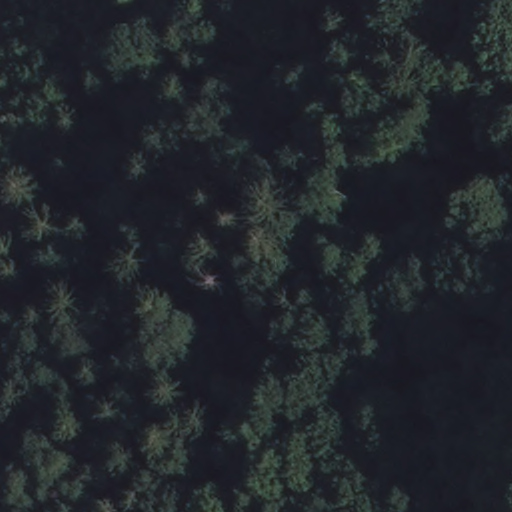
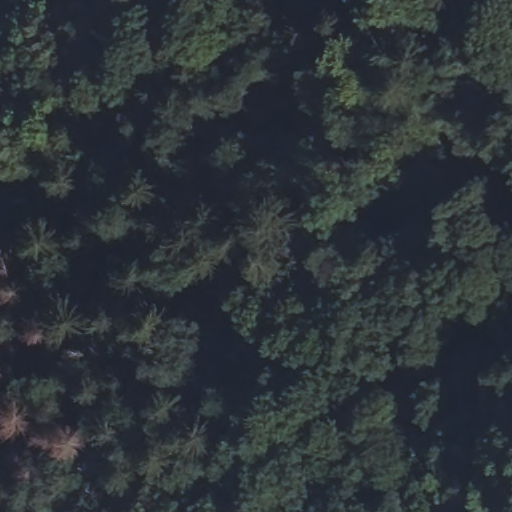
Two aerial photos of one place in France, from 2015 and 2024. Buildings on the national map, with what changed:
[]

